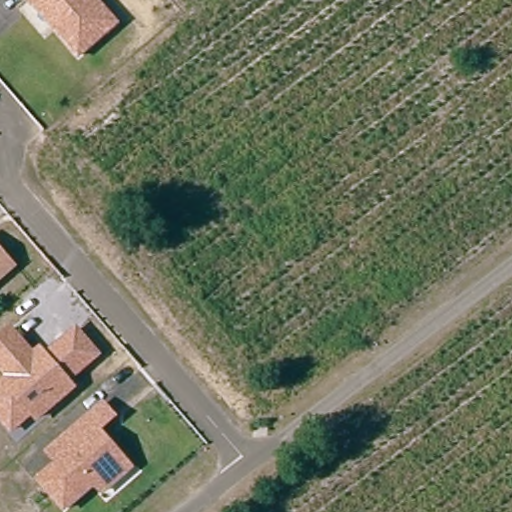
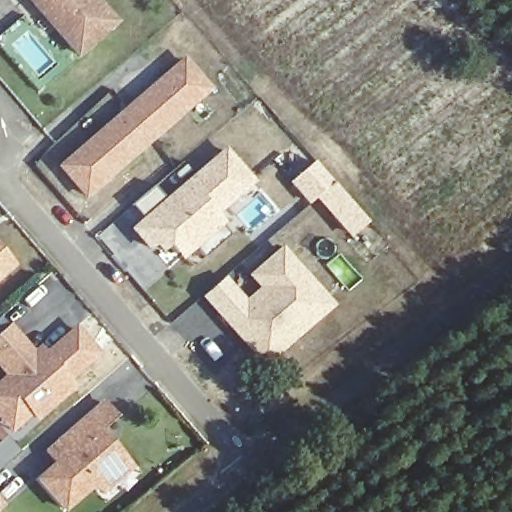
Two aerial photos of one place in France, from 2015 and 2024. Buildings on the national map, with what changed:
unchanged [(80,51),(36,0),(102,0),(118,19),(80,51)]
new [(164,80),(187,61),(211,89),(155,137),(130,109),(143,98),(164,80)]
new [(90,193),(65,165),(130,109),(155,137),(141,149),(120,166),(90,193)]
new [(142,217),(131,204),(157,184),(165,195),(226,146),(259,183),(220,216),(227,223),(183,261),(173,250),(163,258),(155,249),(150,252),(129,228),(142,217)]
new [(337,184),(369,222),(354,235),(321,197),(337,184)]
unchanged [(0,248),(16,267),(0,281),(0,248)]
new [(266,364),(224,315),(207,295),(227,278),(244,298),(249,304),(266,289),(257,277),(274,263),(287,252),(295,261),(328,300),(334,307),(281,351),(266,364)]
unchanged [(33,351),(41,345),(46,350),(78,323),(103,353),(73,381),(78,387),(36,422),(32,418),(11,434),(0,420),(0,379),(4,376),(0,371),(0,332),(11,322),(33,351)]
unchanged [(98,486),(67,511),(41,481),(60,465),(50,453),(61,443),(90,418),(106,405),(117,418),(101,431),(129,463),(135,469),(105,494),(98,486)]
new [(13,444),(19,451),(0,468),(0,445),(8,438),(13,444)]

